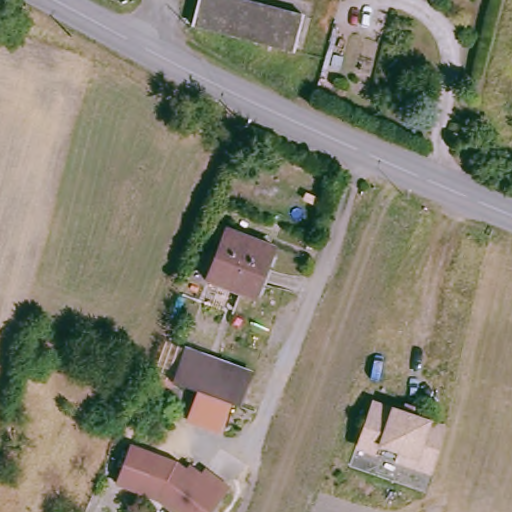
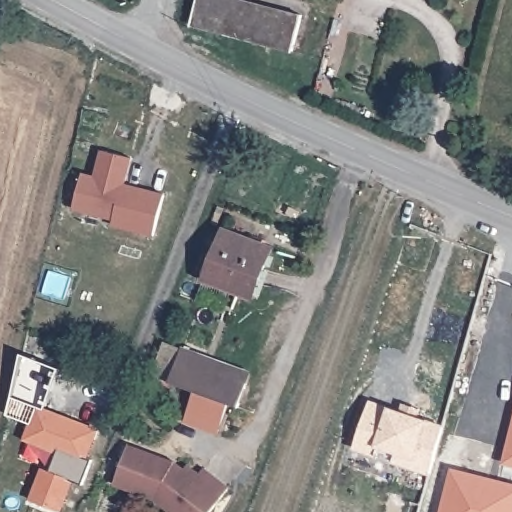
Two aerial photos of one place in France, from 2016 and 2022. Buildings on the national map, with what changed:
unchanged [(289,52),(194,26),(200,0),(238,0),(298,16),(289,52)]
new [(87,177),(99,180),(106,153),(135,160),(127,191),(142,195),(144,191),(169,197),(159,237),(117,227),(119,221),(79,211),(87,177)]
unchanged [(270,245),(250,293),(205,273),(225,226),(270,245)]
unchanged [(187,419),(197,394),(167,382),(182,350),(204,360),(249,378),(245,388),(236,410),(230,408),(221,432),(187,419)]
unchanged [(444,424),(435,456),(422,451),(414,454),(381,443),(374,453),(362,449),(358,438),(371,401),(444,424)]
new [(32,500),(44,468),(51,471),(57,451),(27,438),(38,404),(100,428),(89,458),(92,459),(84,483),(74,479),(63,511),(32,500)]
unchanged [(163,455),(179,463),(187,469),(185,475),(195,480),(204,466),(229,485),(209,512),(181,512),(159,492),(116,475),(131,439),(163,455)]
new [(450,470),(512,486),(512,512),(439,512),(450,470)]

